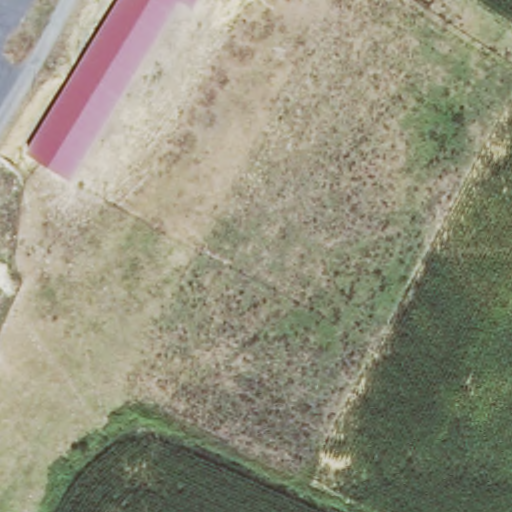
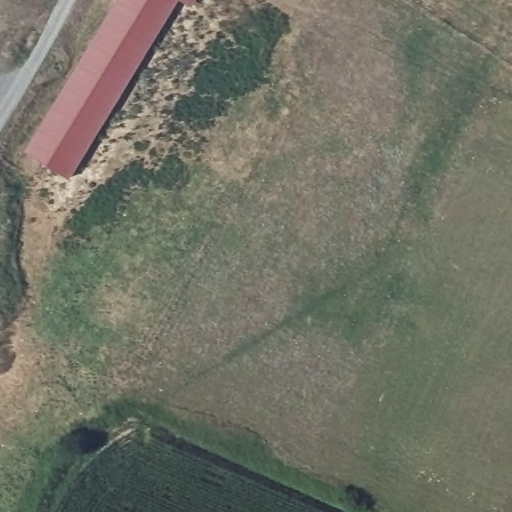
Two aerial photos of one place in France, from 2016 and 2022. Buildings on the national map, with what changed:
unchanged [(177,1),(68,181),(24,152),(115,0),(194,0),(191,7),(177,1)]

